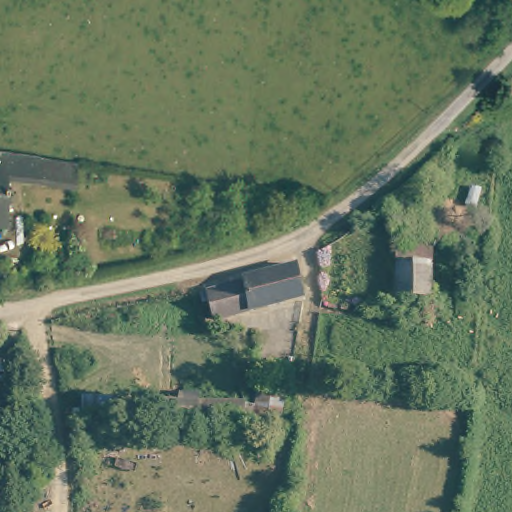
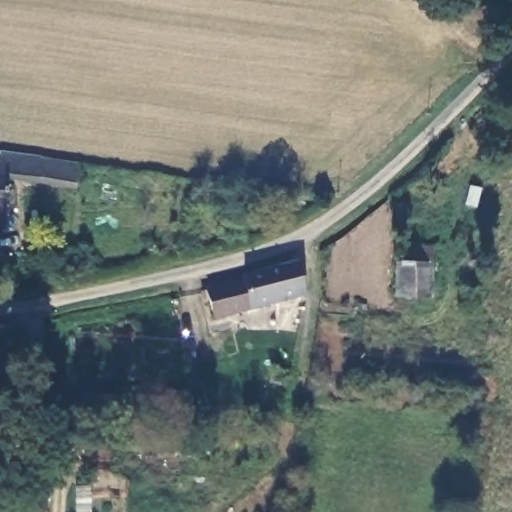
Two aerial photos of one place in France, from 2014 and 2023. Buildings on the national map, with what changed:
unchanged [(10,184),(6,154),(4,143),(84,156),(80,190),(64,188),(10,184)]
unchanged [(4,234),(0,233),(0,156),(6,154),(10,184),(2,184),(4,234)]
unchanged [(441,258),(443,293),(409,298),(407,260),(441,258)]
unchanged [(302,271),(309,290),(262,307),(228,320),(218,297),(240,287),(302,271)]

